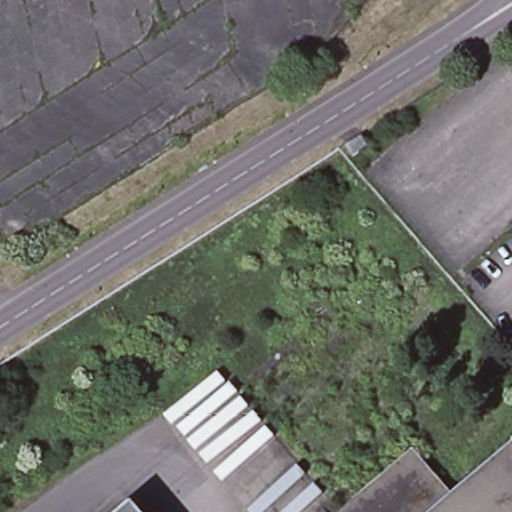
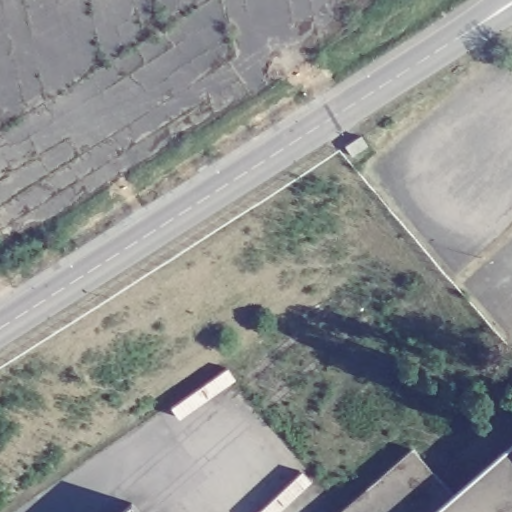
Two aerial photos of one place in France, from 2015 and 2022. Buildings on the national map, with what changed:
unchanged [(467,512),(453,495),(512,444),(512,512),(467,512)]
unchanged [(453,495),(433,512),(338,512),(412,448),(453,495)]
unchanged [(467,512),(433,512),(453,495),(467,512)]
unchanged [(140,512),(119,512),(131,502),(140,512)]

